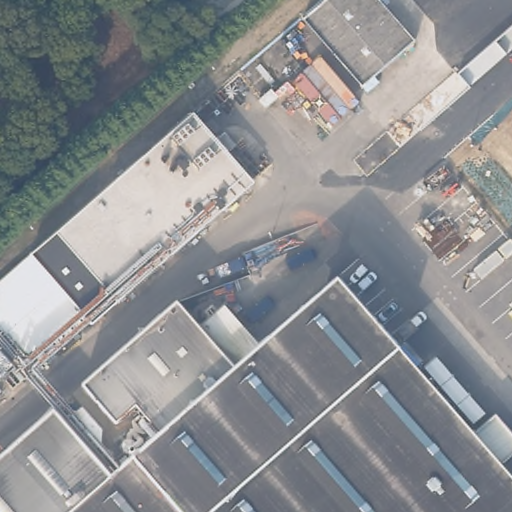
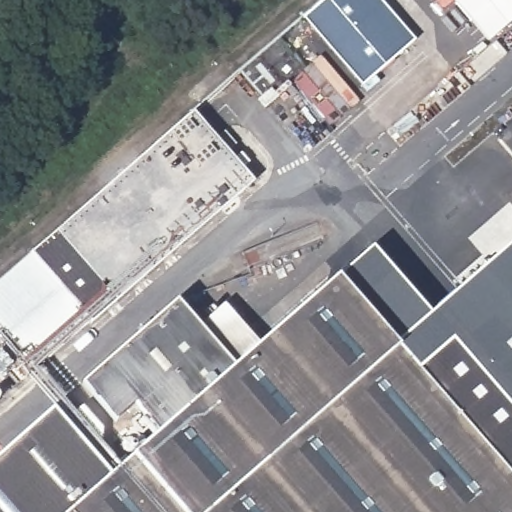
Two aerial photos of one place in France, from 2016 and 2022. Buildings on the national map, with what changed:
unchanged [(316,0),(384,0),(414,34),(362,79),(303,12),(316,0)]
unchanged [(268,170),(105,313),(97,306),(45,351),(0,301),(0,275),(206,100),(268,170)]
new [(475,434),(397,345),(512,243),(512,432),(497,414),(475,434)]
unchanged [(163,436),(141,411),(192,365),(215,392),(240,370),(342,282),(512,477),(512,512),(74,512),(116,476),(163,436)]
unchanged [(176,299),(240,370),(215,392),(192,365),(141,411),(120,430),(80,384),(176,299)]
unchanged [(0,350),(0,320),(119,454),(106,464),(116,476),(74,512),(0,512),(0,459),(53,412),(0,350)]
unchanged [(497,414),(512,432),(512,477),(475,434),(497,414)]

